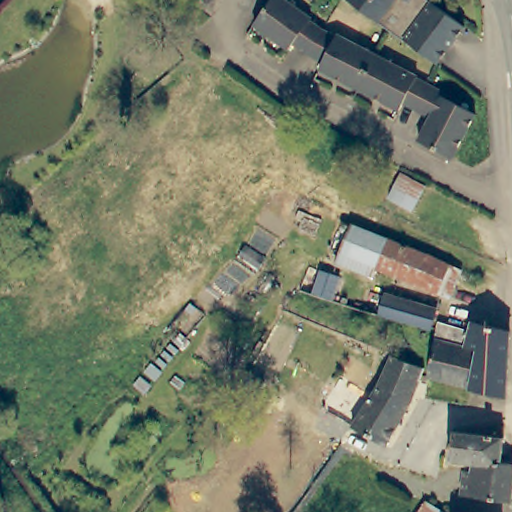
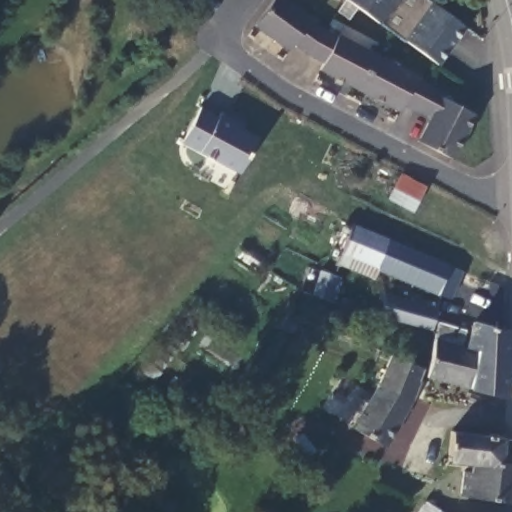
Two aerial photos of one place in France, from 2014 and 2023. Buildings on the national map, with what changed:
unchanged [(276,0),(286,0),(313,20),(311,24),(323,33),(336,40),(337,39),(417,80),(416,81),(443,95),(442,99),(475,117),(452,161),(418,143),(431,119),(404,106),(400,112),(320,71),(323,64),(308,56),(295,46),(290,52),(256,27),(276,0)]
unchanged [(470,32),(442,69),(429,59),(349,0),(427,0),(470,32)]
new [(241,172),(199,151),(182,142),(201,106),(220,115),(222,111),(244,123),(242,128),(258,137),(241,172)]
unchanged [(415,211),(390,198),(402,172),(428,185),(415,211)]
unchanged [(464,273),(452,299),(334,264),(351,225),(464,273)]
unchanged [(343,276),(336,301),(312,293),(321,268),(343,276)]
unchanged [(438,314),(432,334),(381,319),(387,299),(438,314)]
unchanged [(428,380),(438,336),(440,326),(468,332),(465,348),(470,349),(478,352),(470,390),(428,380)]
unchanged [(475,326),(511,335),(507,399),(470,390),(478,352),(470,349),(475,326)]
unchanged [(426,370),(421,383),(412,405),(387,448),(356,430),(353,429),(377,388),(390,355),(426,370)]
unchanged [(502,467),(477,464),(450,461),(451,456),(453,434),(506,440),(502,464),(502,467)]
unchanged [(463,498),(468,469),(477,470),(477,464),(502,467),(502,464),(512,466),(512,505),(463,498)]
unchanged [(444,512),(418,512),(425,501),(444,512)]

